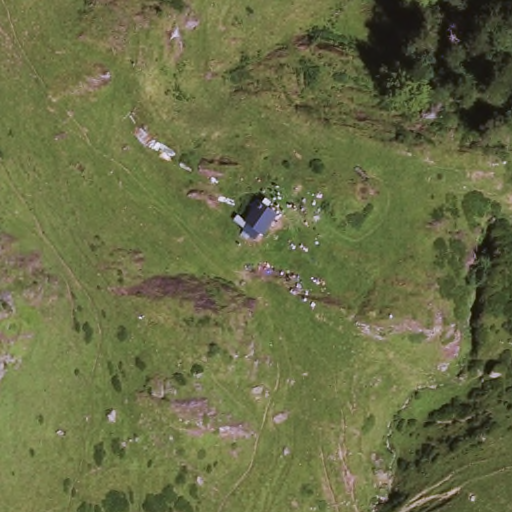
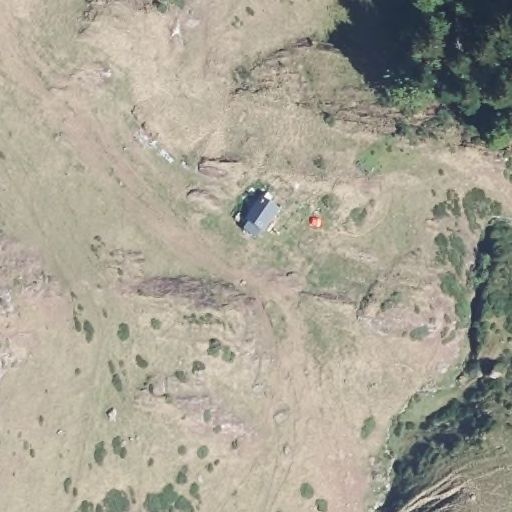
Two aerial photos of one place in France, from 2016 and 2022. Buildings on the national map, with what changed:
unchanged [(241,218),(259,193),(270,200),(282,209),(263,234),(241,218)]

